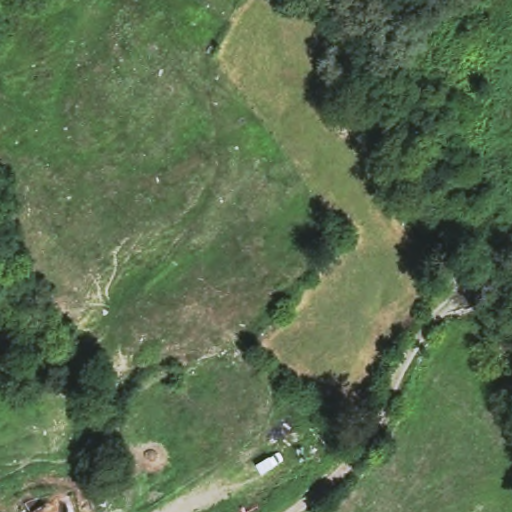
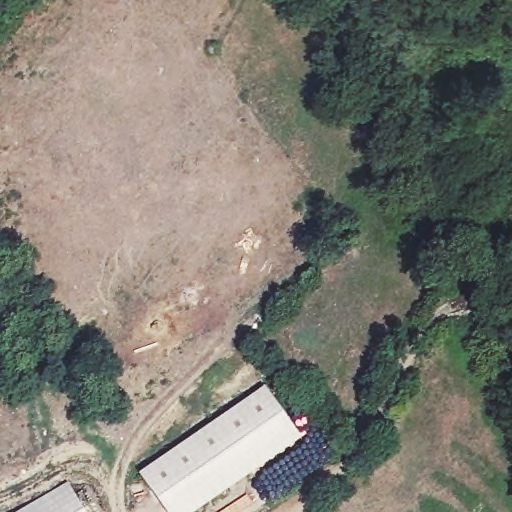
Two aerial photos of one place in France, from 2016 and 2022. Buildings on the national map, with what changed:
new [(141,473),(273,397),(306,454),(205,512),(164,512),(141,473)]
new [(70,480),(89,512),(13,512),(70,480)]

